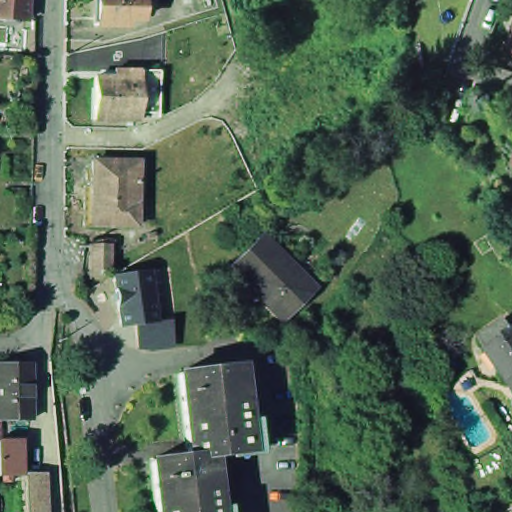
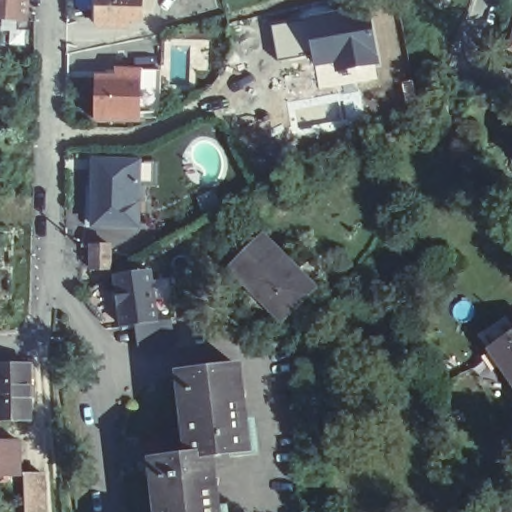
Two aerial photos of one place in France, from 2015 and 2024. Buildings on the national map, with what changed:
unchanged [(36,3),(34,25),(0,23),(0,0),(36,0),(36,3)]
unchanged [(101,11),(101,0),(153,0),(153,5),(144,5),(144,11),(128,11),(128,18),(101,17),(101,11)]
new [(369,2),(381,66),(336,75),(334,67),(314,70),(311,56),(305,16),(369,2)]
demolished [(140,33),(142,33),(140,27),(160,22),(190,12),(195,31),(166,39),(144,46),(140,33)]
new [(305,16),(311,56),(278,61),(270,25),(305,16)]
unchanged [(512,34),(512,37),(511,36),(512,34)]
unchanged [(104,125),(105,85),(125,85),(124,76),(134,76),(148,76),(149,85),(148,126),(104,125)]
unchanged [(97,201),(98,157),(137,159),(136,200),(142,200),(142,229),(135,229),(96,227),(97,201)]
unchanged [(287,322),(237,268),(271,237),(320,291),(287,322)]
unchanged [(118,247),(118,271),(102,271),(102,248),(118,247)]
unchanged [(128,330),(124,278),(158,274),(162,326),(128,330)]
unchanged [(512,316),(512,368),(498,348),(488,332),(512,316)]
unchanged [(28,358),(29,414),(0,414),(0,358),(28,358)]
unchanged [(180,378),(238,370),(245,425),(251,424),(255,453),(212,459),(211,455),(189,457),(180,378)]
unchanged [(18,440),(19,475),(0,475),(0,440),(18,440)]
unchanged [(189,457),(211,455),(212,459),(218,512),(159,512),(154,462),(189,457)]
unchanged [(43,473),(43,512),(24,512),(23,473),(43,473)]
unchanged [(225,512),(218,512),(225,511),(225,512)]

